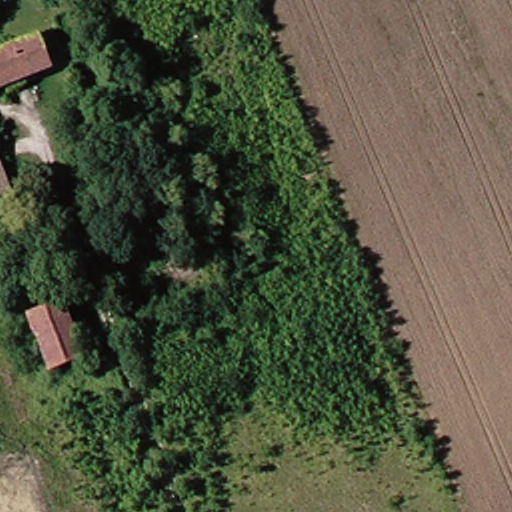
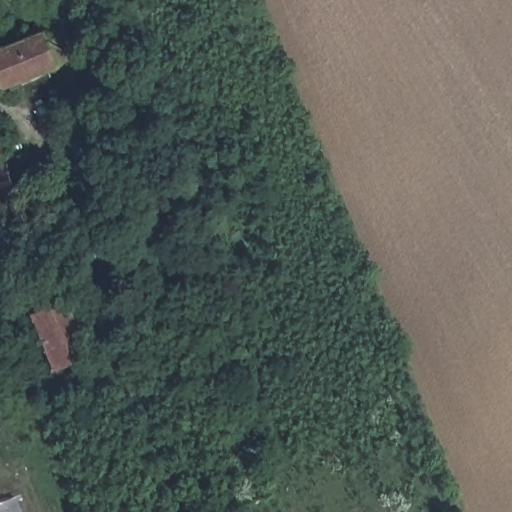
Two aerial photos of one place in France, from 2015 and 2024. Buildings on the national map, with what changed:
unchanged [(64,58),(0,81),(0,43),(52,24),(64,58)]
unchanged [(0,167),(0,127),(14,163),(0,167)]
unchanged [(25,191),(0,200),(0,167),(14,163),(25,191)]
unchanged [(25,302),(56,291),(79,346),(47,356),(25,302)]
new [(0,505),(17,498),(23,512),(0,512),(0,505)]

